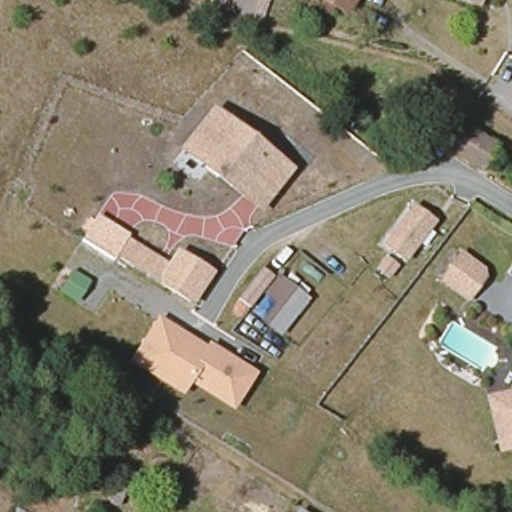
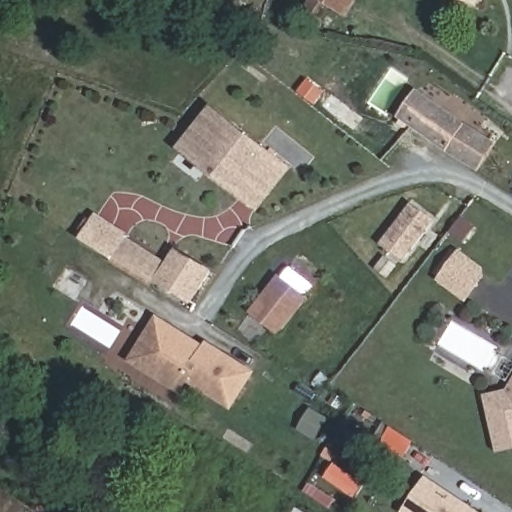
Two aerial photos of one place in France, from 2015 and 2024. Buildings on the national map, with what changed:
unchanged [(349,13),(337,6),(321,28),(302,16),(314,0),(358,0),(349,13)]
unchanged [(318,104),(329,91),(364,117),(355,130),(318,104)]
unchanged [(422,98),(496,147),(482,170),(406,120),(422,98)]
unchanged [(184,149),(215,110),(289,169),(258,207),(244,196),(219,176),(184,149)]
unchanged [(431,222),(403,259),(385,246),(413,208),(431,222)]
unchanged [(187,298),(154,277),(111,249),(121,235),(164,263),(174,248),(206,268),(187,298)]
unchanged [(483,270),(485,277),(470,299),(444,282),(462,255),(483,270)]
unchanged [(309,296),(278,334),(256,321),(271,302),(258,293),(247,308),(233,300),(261,261),(309,296)]
unchanged [(90,281),(75,305),(57,294),(71,269),(90,281)]
unchanged [(231,412),(189,385),(182,397),(125,363),(155,316),(204,346),(208,340),(256,372),(231,412)]
unchanged [(501,459),(487,406),(507,400),(512,390),(512,455),(501,459)]
new [(389,425),(414,441),(404,457),(379,440),(389,425)]
new [(481,512),(401,512),(425,475),(481,512)]
unchanged [(306,512),(297,512),(300,508),(306,512)]

